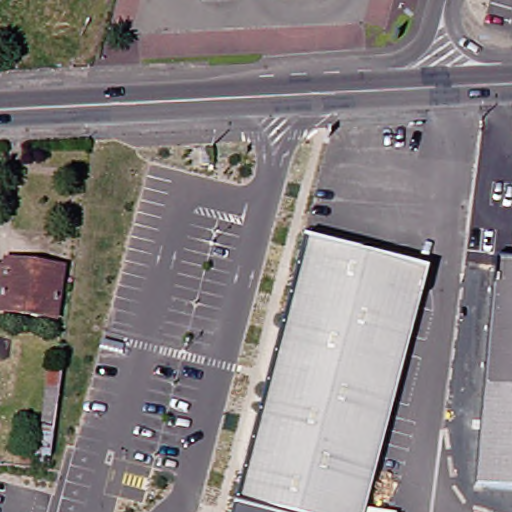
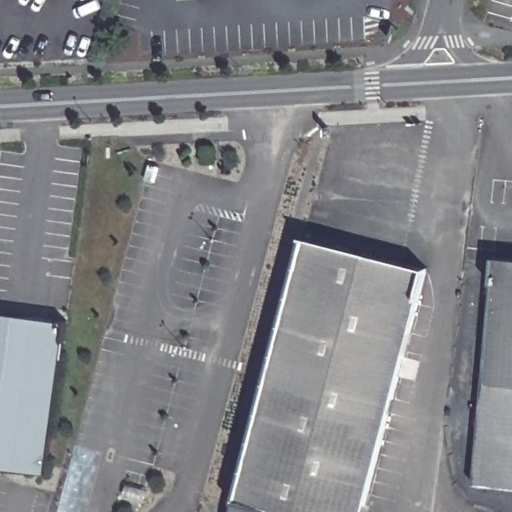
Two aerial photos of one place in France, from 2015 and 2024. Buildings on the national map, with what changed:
unchanged [(430,264),(365,512),(300,512),(279,506),(240,496),(309,232),(430,264)]
unchanged [(482,482),(491,380),(502,252),(512,253),(512,485),(482,482)]
demolished [(59,315),(0,308),(0,267),(9,268),(10,261),(64,269),(59,315)]
new [(50,474),(0,470),(0,313),(70,322),(50,474)]
demolished [(51,463),(23,460),(24,447),(33,448),(36,425),(40,425),(41,421),(44,421),(51,363),(64,364),(53,455),(51,463)]
unchanged [(236,512),(240,496),(279,506),(278,512),(236,512)]
unchanged [(300,512),(278,512),(279,506),(300,512)]

